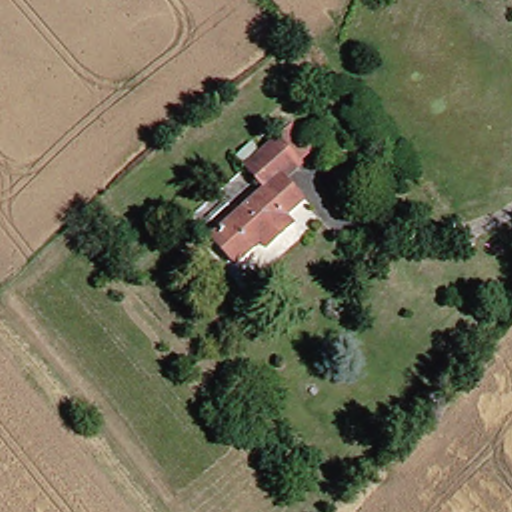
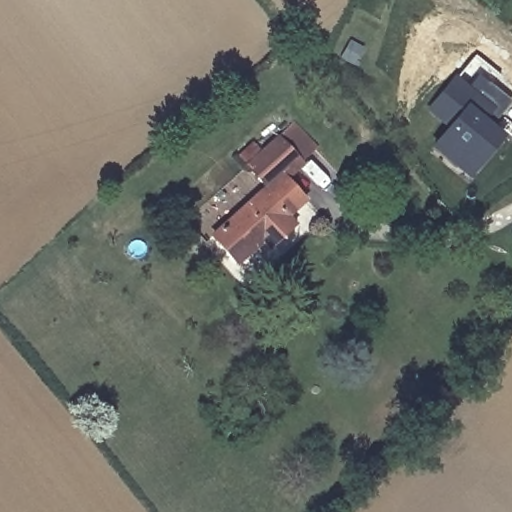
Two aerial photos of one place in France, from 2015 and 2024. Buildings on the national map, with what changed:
new [(467,181),(428,149),(447,130),(426,111),(456,77),(468,88),(479,75),(512,103),(512,104),(491,130),(504,139),(467,181)]
unchanged [(277,137),(297,161),(282,177),(303,201),(286,219),(291,226),(266,250),(259,242),(235,262),(212,238),(266,189),(244,167),(277,137)]

